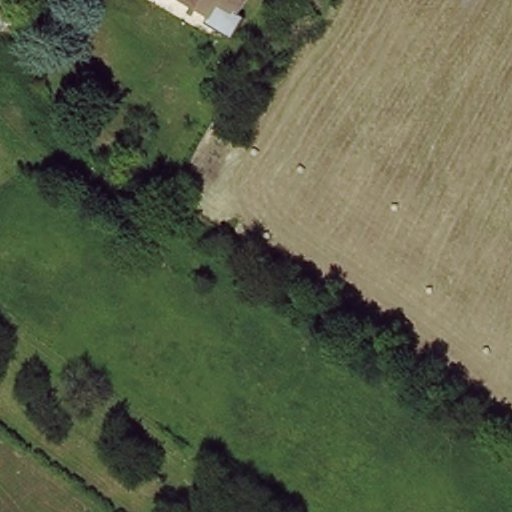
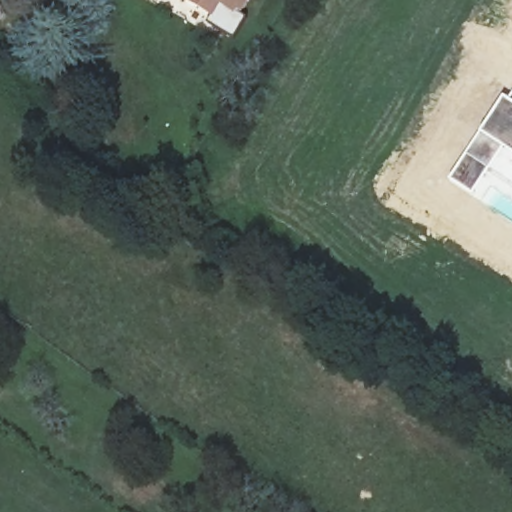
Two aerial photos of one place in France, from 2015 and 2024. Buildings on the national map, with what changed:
unchanged [(212,3),(203,20),(174,2),(170,0),(237,0),(229,13),(212,3)]
new [(475,137),(504,95),(507,97),(512,91),(512,157),(503,150),(490,171),(475,197),(448,181),(475,137)]
new [(503,150),(512,157),(512,185),(490,171),(503,150)]

